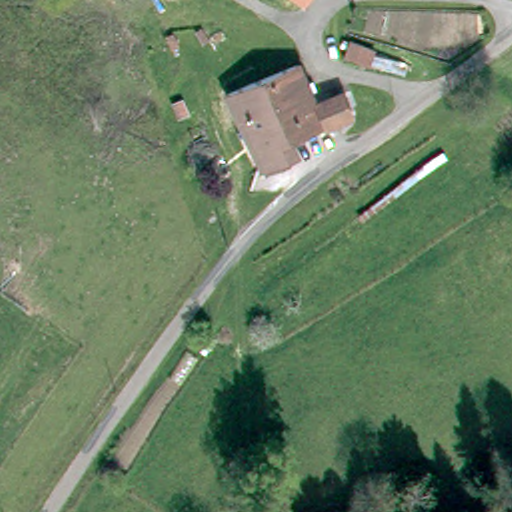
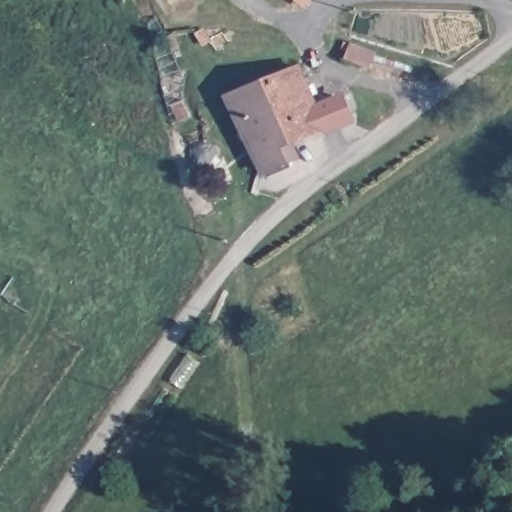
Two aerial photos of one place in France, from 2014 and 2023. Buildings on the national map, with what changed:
unchanged [(205,32),(197,35),(194,28),(201,25),(205,32)]
unchanged [(370,61),(347,54),(352,39),(375,46),(370,61)]
unchanged [(163,53),(169,67),(157,72),(152,57),(163,53)]
unchanged [(314,100),(339,89),(350,112),(325,124),(324,121),(290,136),(297,152),(260,169),(246,132),(239,135),(236,127),(242,125),(229,91),(296,60),(314,100)]

